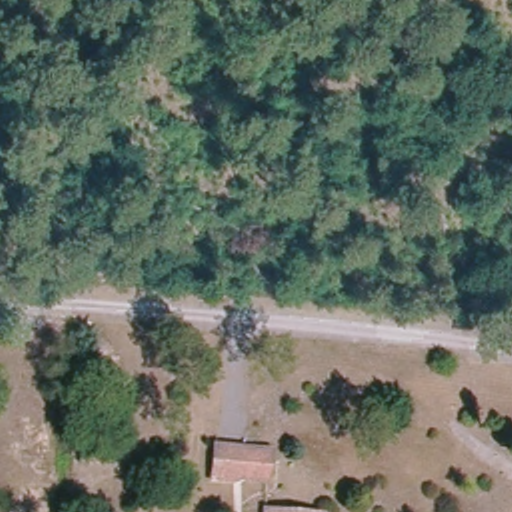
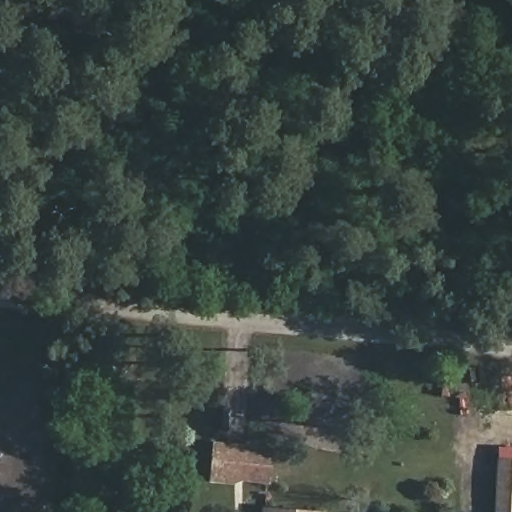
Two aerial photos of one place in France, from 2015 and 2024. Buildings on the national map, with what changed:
unchanged [(269,485),(207,481),(211,440),(272,445),(269,485)]
new [(512,447),(512,512),(495,512),(498,446),(512,447)]
unchanged [(266,509),(296,512),(265,512),(266,509)]

